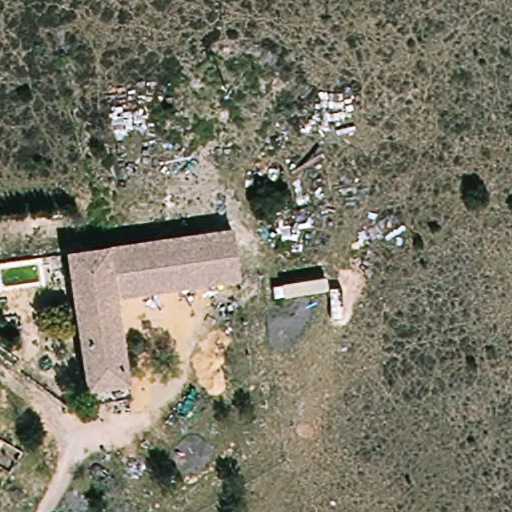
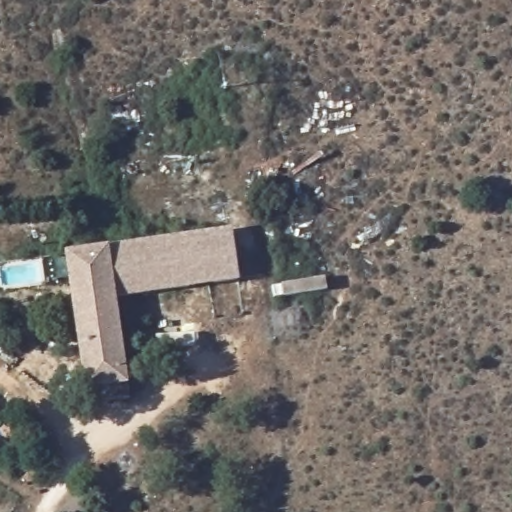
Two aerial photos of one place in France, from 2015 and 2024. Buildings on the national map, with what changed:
unchanged [(238,230),(244,282),(120,298),(130,392),(87,398),(68,255),(238,230)]

